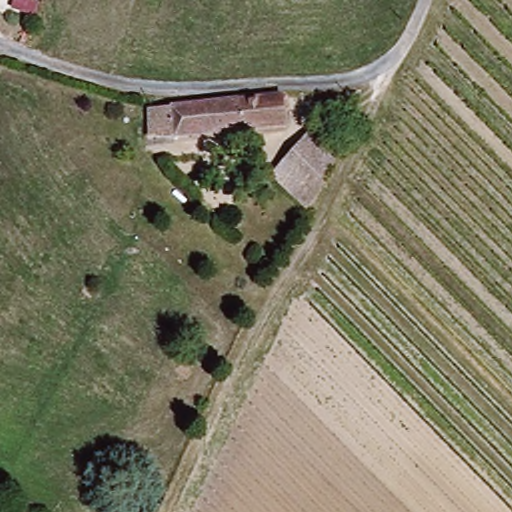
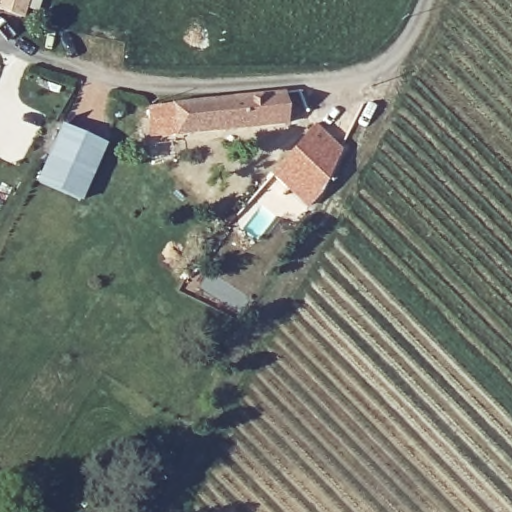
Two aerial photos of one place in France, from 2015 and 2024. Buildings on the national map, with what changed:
new [(0,13),(0,0),(29,0),(23,20),(0,13)]
unchanged [(277,127),(172,132),(146,132),(147,107),(275,99),(277,127)]
new [(61,125),(105,143),(82,201),(37,182),(61,125)]
unchanged [(273,191),(314,134),(330,147),(290,206),(273,191)]

